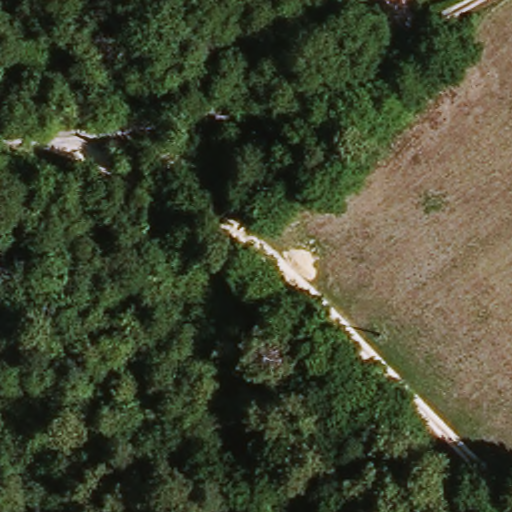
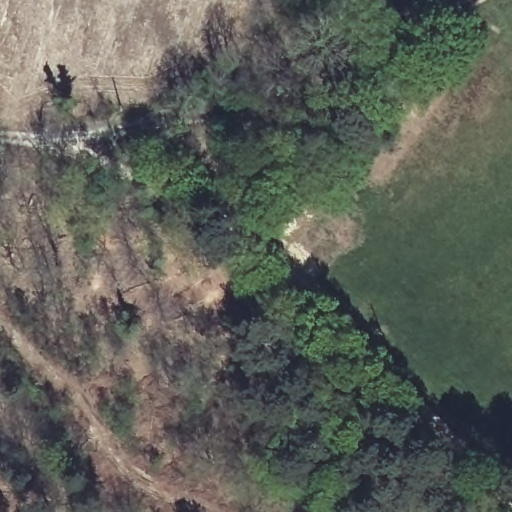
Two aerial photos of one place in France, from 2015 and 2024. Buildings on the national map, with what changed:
[]

